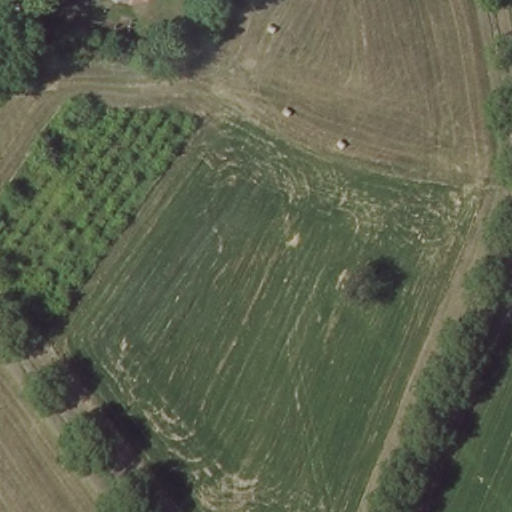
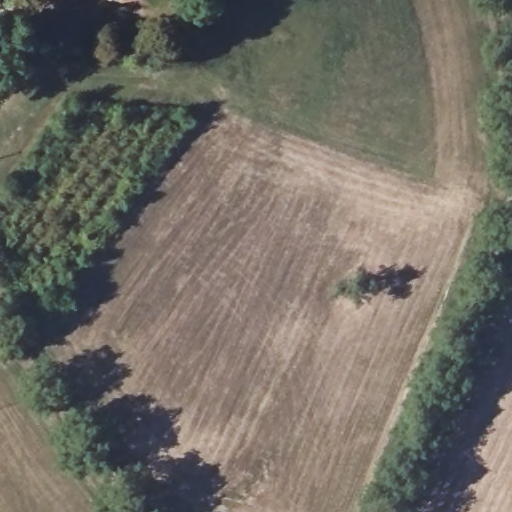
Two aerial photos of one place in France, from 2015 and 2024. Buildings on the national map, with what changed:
unchanged [(125,9),(101,0),(147,0),(145,5),(125,9)]

